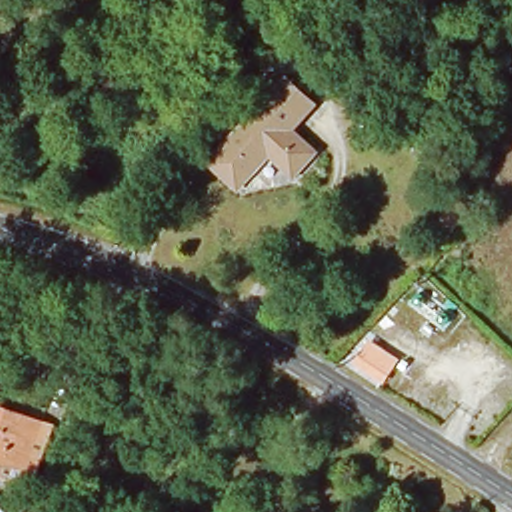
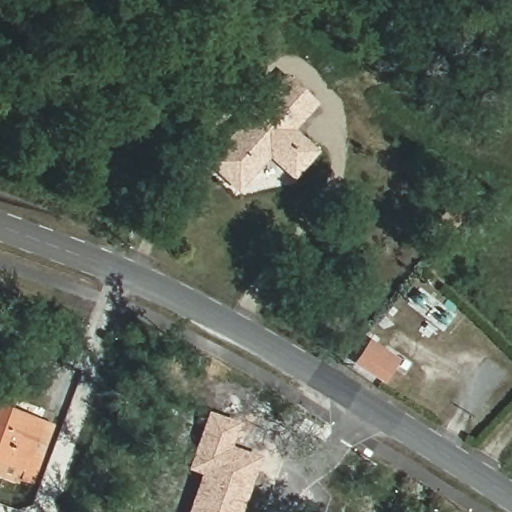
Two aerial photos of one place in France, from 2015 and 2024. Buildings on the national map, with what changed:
unchanged [(298,177),(273,156),(241,191),(212,163),(290,77),(312,99),(320,104),(297,131),(321,153),(298,177)]
unchanged [(392,366),(382,382),(355,363),(365,348),(392,366)]
unchanged [(19,480),(17,485),(0,478),(0,408),(40,423),(54,428),(42,461),(34,485),(19,480)]
new [(189,470),(209,412),(240,424),(232,446),(261,457),(242,512),(189,512),(201,475),(189,470)]

